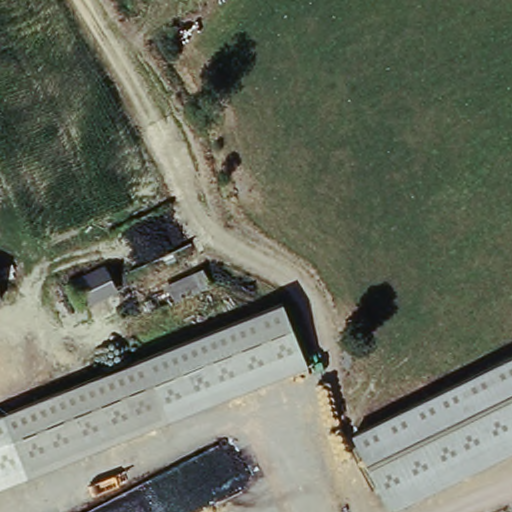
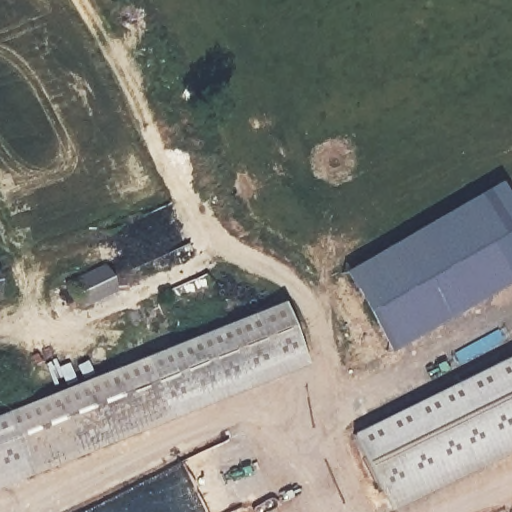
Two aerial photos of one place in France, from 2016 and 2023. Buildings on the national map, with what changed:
new [(512,202),(512,280),(389,351),(343,272),(500,181),(512,202)]
unchanged [(119,299),(83,315),(73,289),(107,273),(119,299)]
unchanged [(159,291),(202,273),(209,290),(166,308),(159,291)]
unchanged [(2,429),(143,369),(280,312),(299,358),(0,484),(0,430),(2,429)]
unchanged [(512,452),(392,510),(356,433),(512,358),(512,452)]

